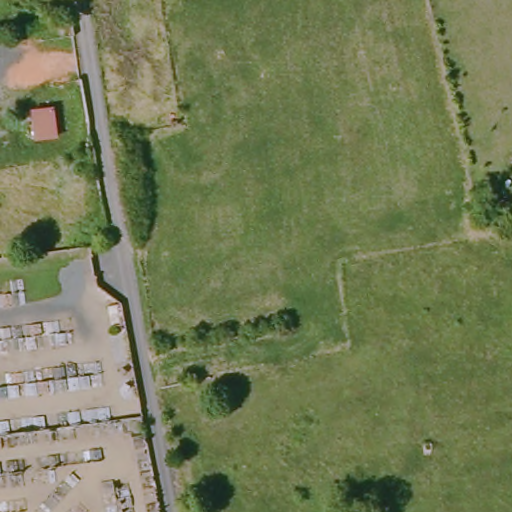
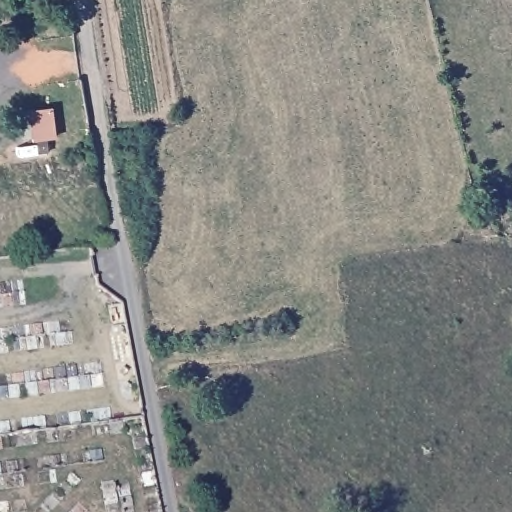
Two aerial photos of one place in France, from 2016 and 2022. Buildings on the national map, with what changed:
unchanged [(479,202),(512,199),(512,233),(485,237),(479,202)]

